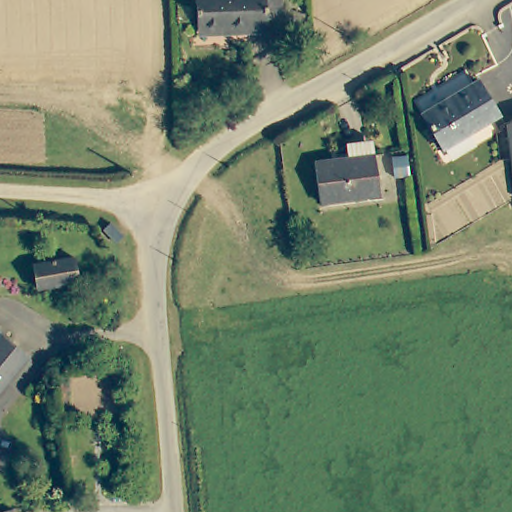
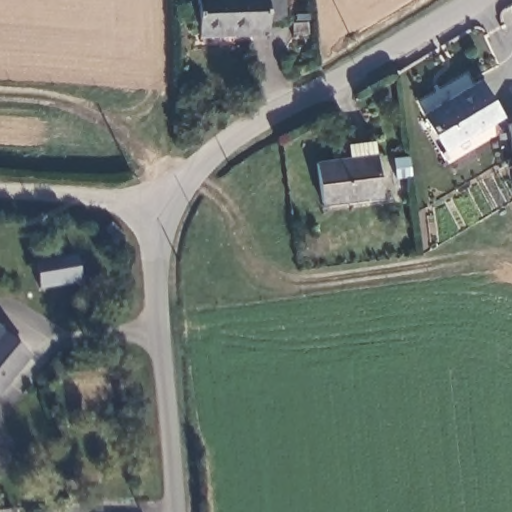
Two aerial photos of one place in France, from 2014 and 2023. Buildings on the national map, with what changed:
unchanged [(192,0),(283,0),(285,15),(267,17),(268,30),(193,33),(192,0)]
unchanged [(493,111),(436,146),(417,109),(471,75),(493,111)]
unchanged [(512,117),(512,165),(505,120),(512,117)]
unchanged [(380,193),(321,201),(313,156),(347,153),(346,139),(375,137),(380,193)]
unchanged [(76,280),(35,288),(30,263),(70,255),(76,280)]
unchanged [(29,355),(0,388),(0,326),(29,355)]

